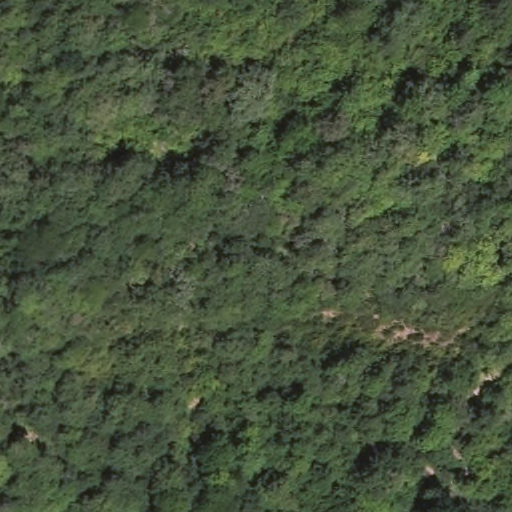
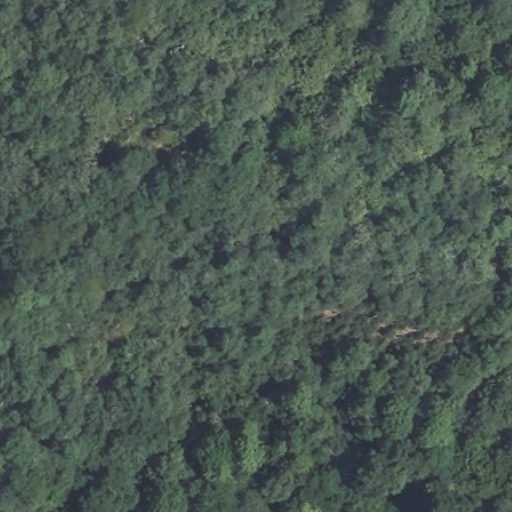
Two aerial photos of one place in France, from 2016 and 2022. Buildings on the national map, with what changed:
[]

